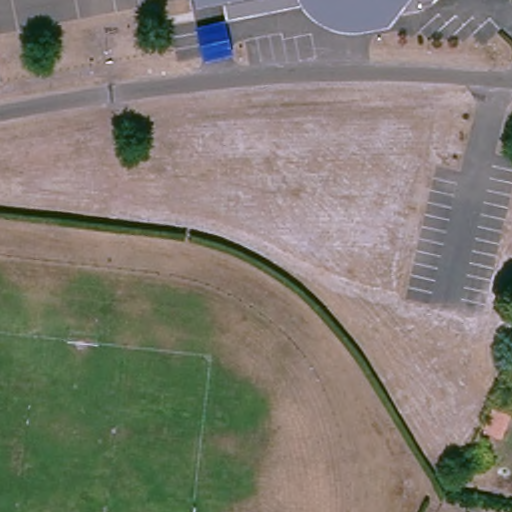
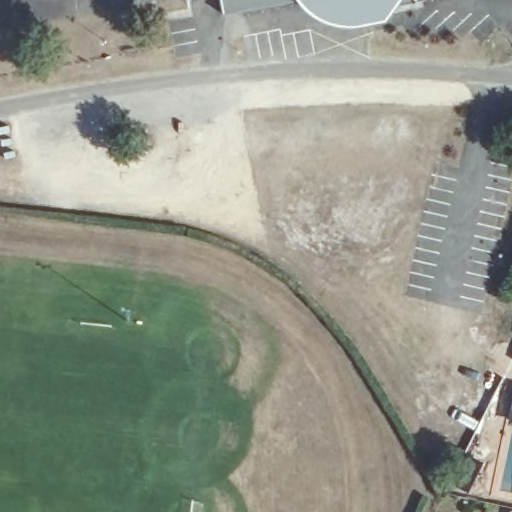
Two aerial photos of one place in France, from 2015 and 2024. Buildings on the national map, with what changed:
unchanged [(382,20),(359,25),(332,21),(316,14),(303,0),(416,0),(399,2),(382,20)]

